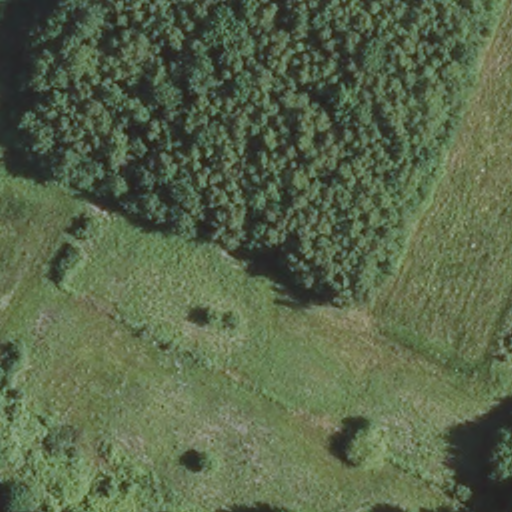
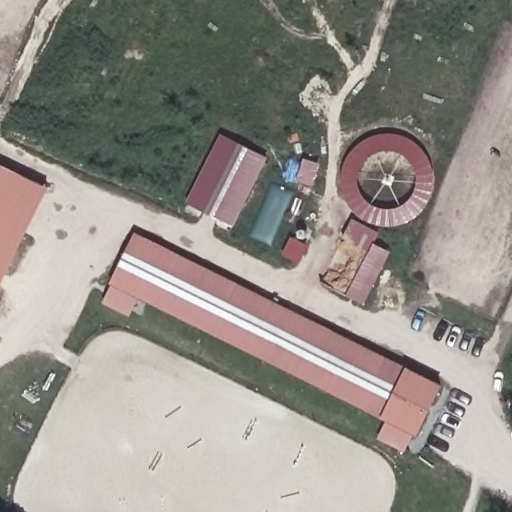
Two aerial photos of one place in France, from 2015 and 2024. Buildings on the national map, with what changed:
new [(233,227),(186,203),(221,134),(268,157),(233,227)]
new [(0,291),(0,164),(49,187),(0,291)]
new [(367,251),(343,238),(353,219),(378,232),(373,242),(391,251),(364,303),(345,294),(367,251)]
new [(131,313),(105,300),(113,284),(112,283),(136,235),(149,241),(125,290),(139,297),(131,313)]
new [(125,290),(149,241),(440,386),(416,434),(139,297),(125,290)]

